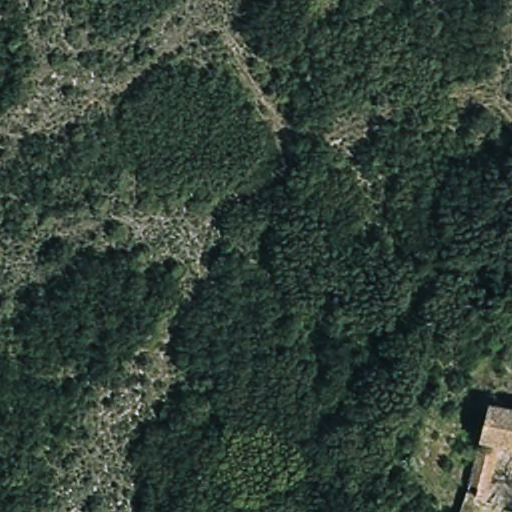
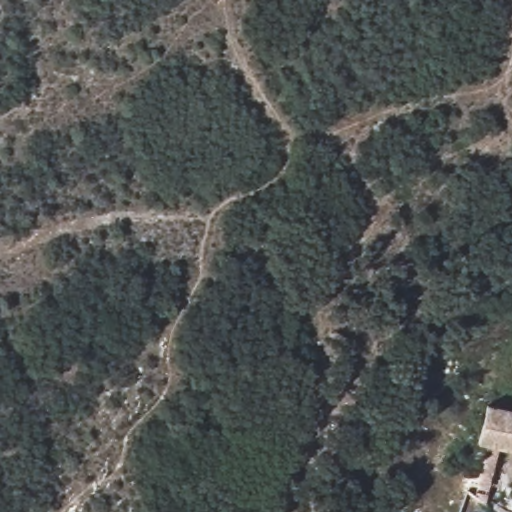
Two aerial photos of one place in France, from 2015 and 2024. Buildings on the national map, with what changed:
unchanged [(491,490),(471,485),(490,402),(512,407),(512,445),(503,443),(491,490)]

